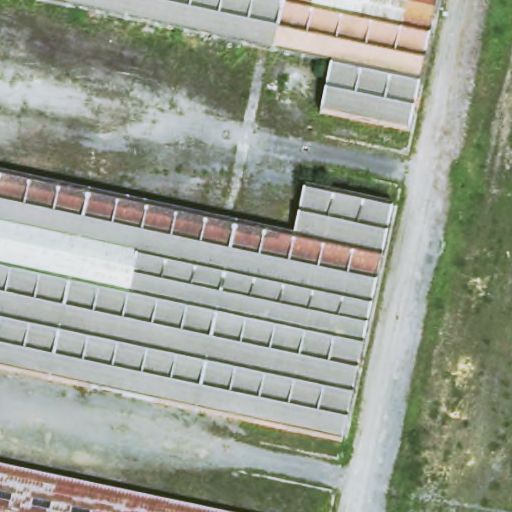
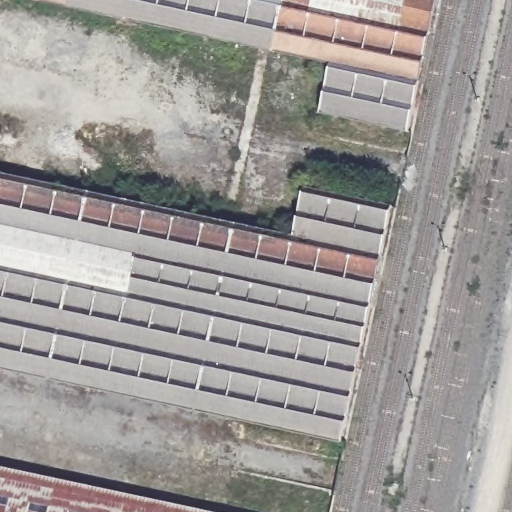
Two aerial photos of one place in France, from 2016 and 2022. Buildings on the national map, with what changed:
unchanged [(408,134),(322,115),(333,64),(34,0),(437,0),(408,134)]
unchanged [(296,237),(306,187),(391,206),(340,445),(0,372),(0,173),(189,214),(296,237)]
unchanged [(0,512),(0,468),(208,512),(0,512)]

